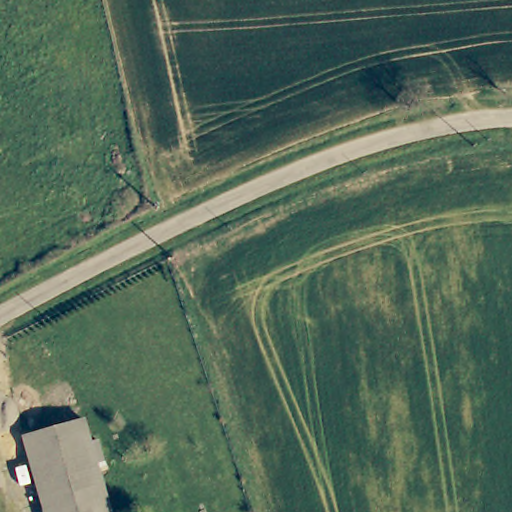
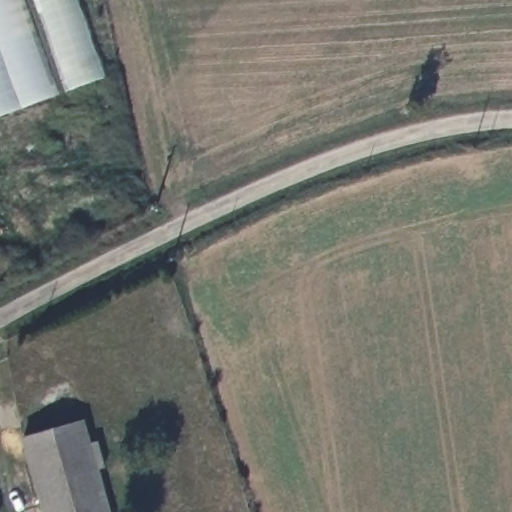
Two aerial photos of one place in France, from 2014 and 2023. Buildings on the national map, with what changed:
new [(22,0),(57,96),(0,118),(0,0),(22,0)]
new [(70,90),(37,0),(79,0),(106,76),(70,90)]
unchanged [(107,512),(44,512),(25,441),(84,425),(107,512)]

